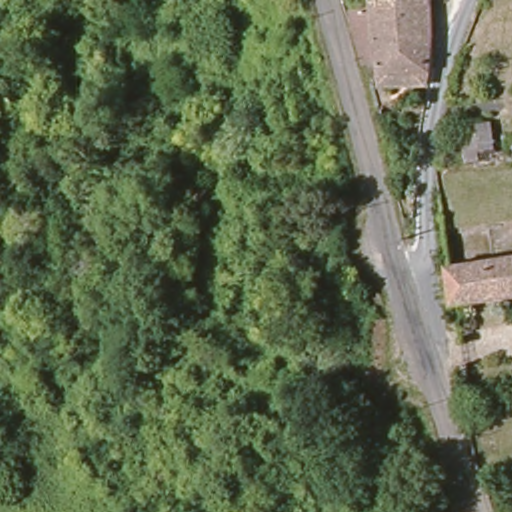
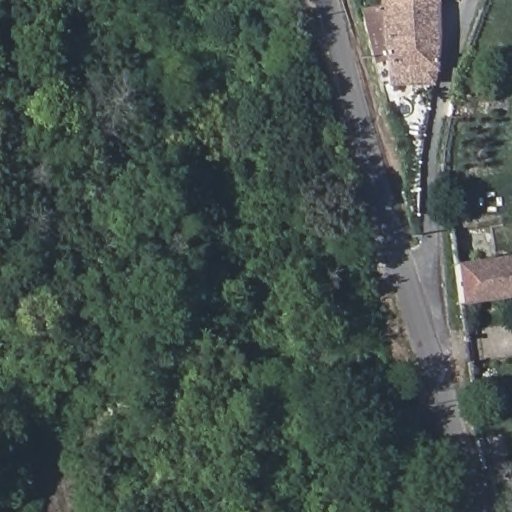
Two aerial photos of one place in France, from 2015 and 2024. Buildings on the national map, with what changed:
unchanged [(400,81),(400,72),(389,71),(382,5),(393,4),(433,0),(438,0),(439,68),(439,73),(436,79),(415,80),(400,81)]
unchanged [(433,0),(393,4),(391,0),(433,0)]
unchanged [(454,245),(452,229),(512,219),(512,292),(461,299),(454,245)]

